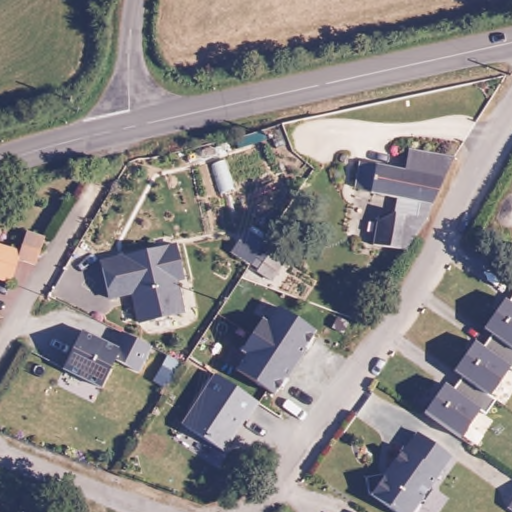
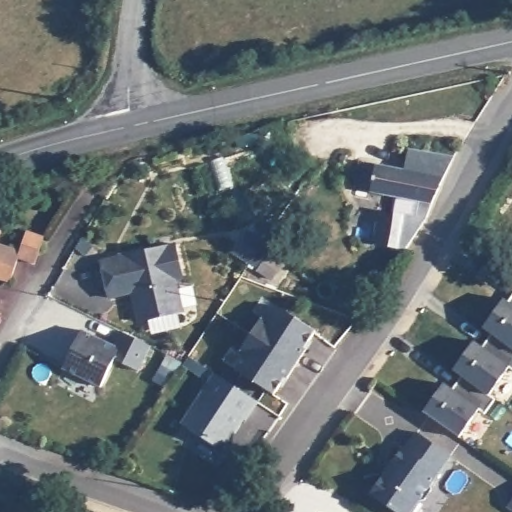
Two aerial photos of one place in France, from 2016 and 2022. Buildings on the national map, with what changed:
unchanged [(372,244),(376,219),(395,213),(398,194),(353,188),(358,165),(405,171),(408,150),(455,157),(438,182),(422,225),(413,241),(407,250),(372,244)]
unchanged [(295,241),(278,266),(266,257),(282,232),(295,241)]
unchanged [(6,278),(0,277),(0,245),(16,251),(6,278)]
unchanged [(182,282),(175,283),(181,312),(136,322),(130,296),(107,300),(100,262),(175,245),(182,282)]
unchanged [(445,382),(453,387),(463,373),(455,368),(475,339),(483,345),(493,331),(485,326),(505,297),(509,300),(512,295),(512,367),(510,366),(491,393),(497,397),(486,412),(480,408),(461,436),(425,410),(445,382)]
unchanged [(246,355),(240,351),(260,320),(266,325),(277,307),(314,331),(272,396),(236,372),(246,355)]
unchanged [(117,357),(104,386),(65,367),(83,329),(92,333),(99,337),(116,345),(123,330),(152,344),(141,369),(117,357)]
unchanged [(211,375),(254,403),(223,451),(180,423),(211,375)]
unchanged [(452,455),(432,483),(432,488),(425,498),(420,499),(411,512),(399,512),(370,491),(367,475),(383,472),(385,473),(404,447),(406,448),(418,431),(452,455)]

